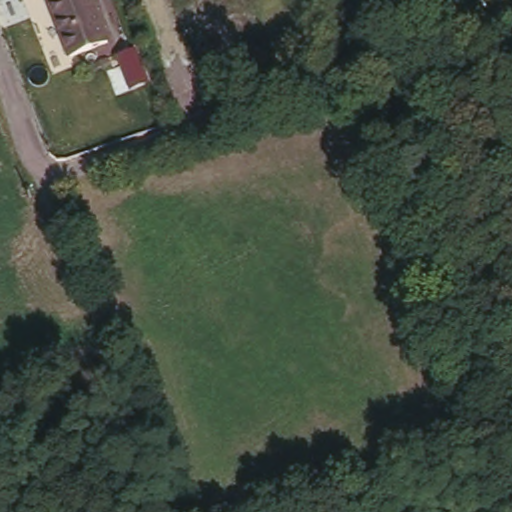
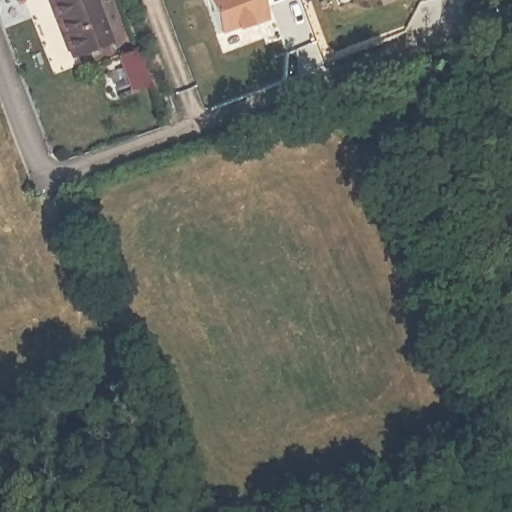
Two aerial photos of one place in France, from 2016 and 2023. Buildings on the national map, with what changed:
unchanged [(74,51),(54,0),(98,0),(112,37),(74,51)]
new [(266,19),(238,30),(237,26),(221,32),(208,0),(276,0),(262,5),(266,19)]

